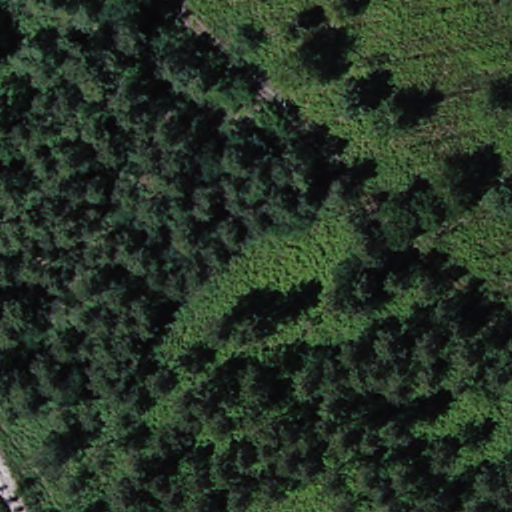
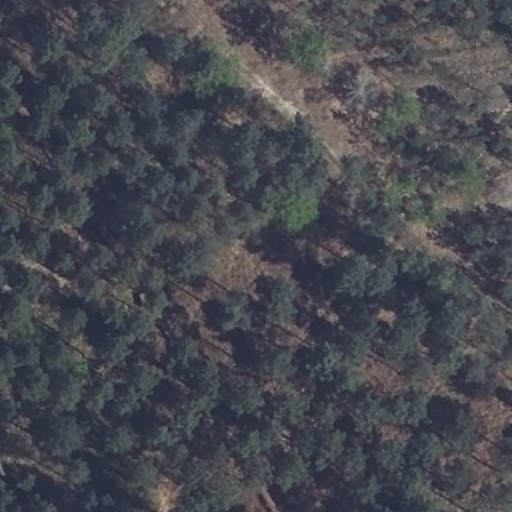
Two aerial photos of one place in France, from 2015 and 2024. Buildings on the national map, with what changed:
[]

